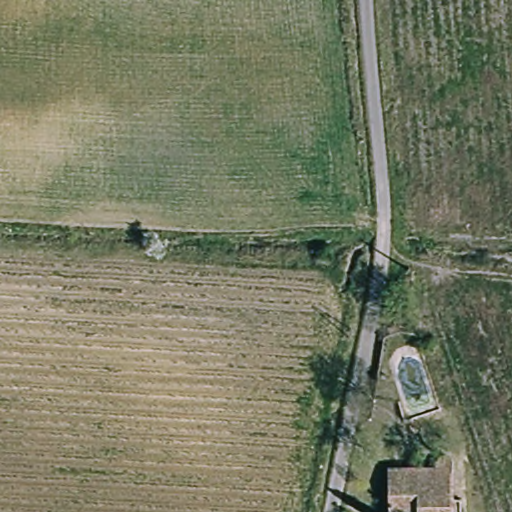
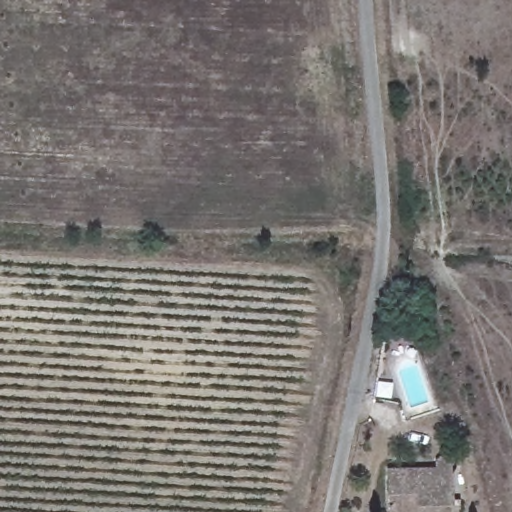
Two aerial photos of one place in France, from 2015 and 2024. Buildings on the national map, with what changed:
unchanged [(393,470),(458,468),(458,512),(393,512),(393,470)]

